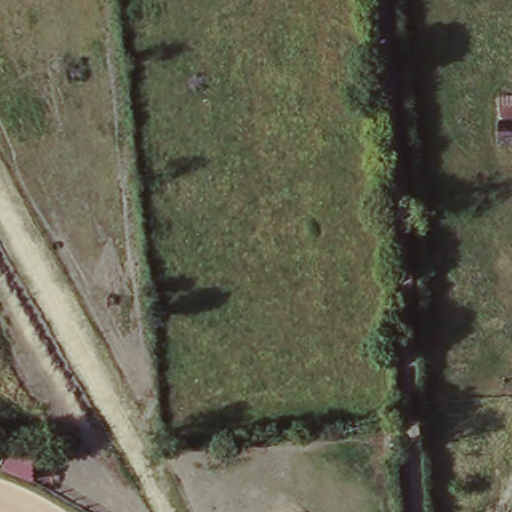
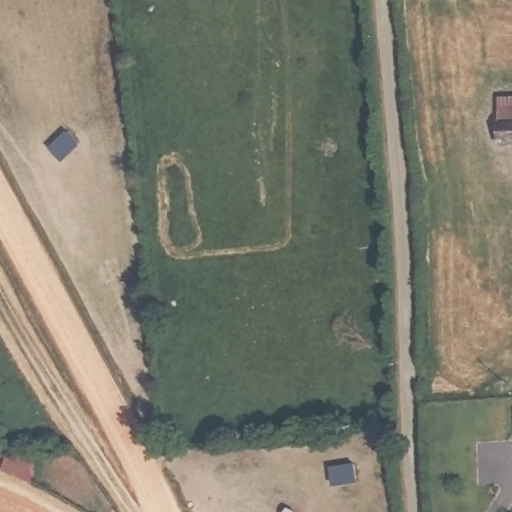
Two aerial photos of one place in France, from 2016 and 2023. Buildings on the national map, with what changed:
unchanged [(512,121),(493,122),(491,94),(512,93),(512,121)]

